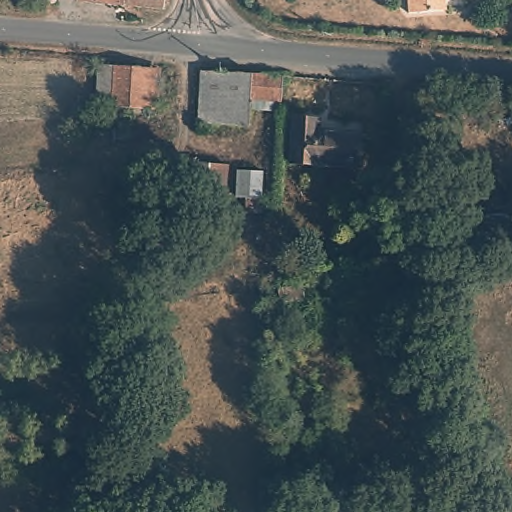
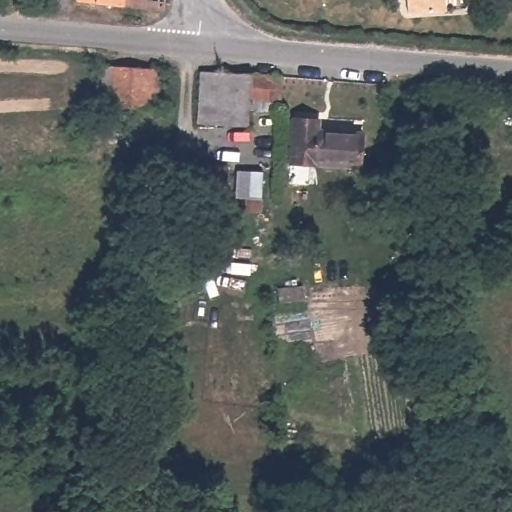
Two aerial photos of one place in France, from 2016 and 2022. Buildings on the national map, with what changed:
unchanged [(124,5),(83,0),(124,0),(124,5)]
unchanged [(164,9),(124,5),(124,0),(165,0),(164,9)]
unchanged [(457,3),(422,5),(422,0),(457,0),(457,3)]
unchanged [(158,109),(139,106),(99,101),(101,65),(143,71),(159,74),(158,109)]
unchanged [(275,104),(246,101),(245,124),(197,120),(203,72),(280,80),(275,104)]
unchanged [(291,167),(294,125),(319,127),(319,135),(361,141),(359,174),(291,167)]
unchanged [(481,512),(469,512),(468,506),(459,505),(458,493),(478,490),(481,512)]

